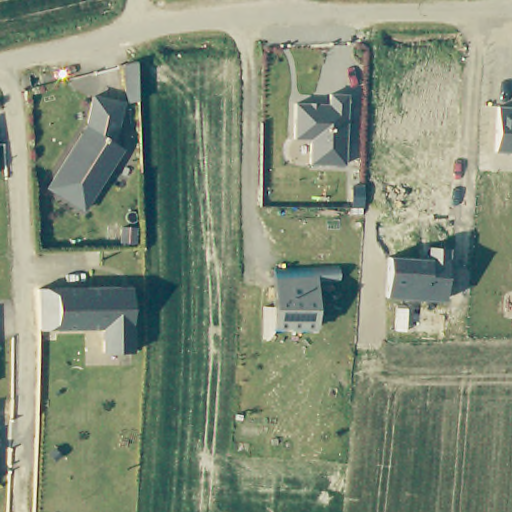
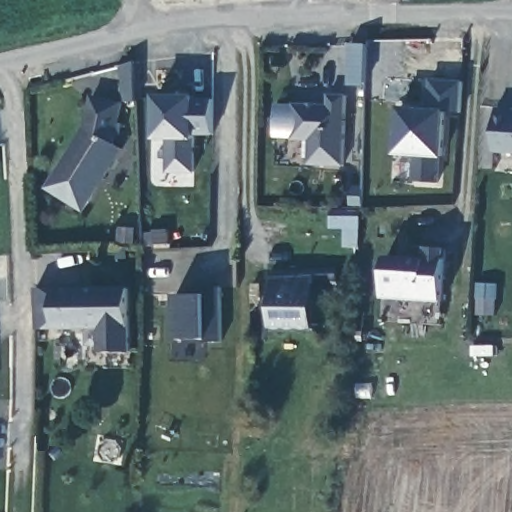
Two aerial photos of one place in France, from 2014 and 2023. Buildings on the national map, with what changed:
new [(448,111),(443,157),(442,183),(413,181),(415,156),(395,155),(400,106),(427,108),(430,78),(462,81),(460,111),(448,111)]
new [(214,135),(196,134),(196,140),(196,173),(167,172),(169,140),(155,140),(156,94),(197,95),(214,98),(214,135)]
unchanged [(330,103),(329,94),(348,94),(346,164),(311,162),(312,139),(296,139),(295,103),(330,103)]
unchanged [(120,104),(111,144),(120,150),(81,212),(45,189),(77,140),(84,128),(91,98),(120,104)]
unchanged [(512,151),(497,151),(498,106),(512,106),(512,151)]
unchanged [(425,259),(426,246),(425,245),(449,247),(445,300),(386,297),(388,257),(425,259)]
unchanged [(338,268),(338,279),(317,281),(316,329),(273,329),(272,269),(338,268)]
new [(223,341),(207,339),(177,340),(175,295),(203,295),(203,287),(221,287),(223,341)]
unchanged [(84,290),(127,290),(127,354),(99,354),(99,329),(85,329),(52,329),(52,291),(84,290)]

